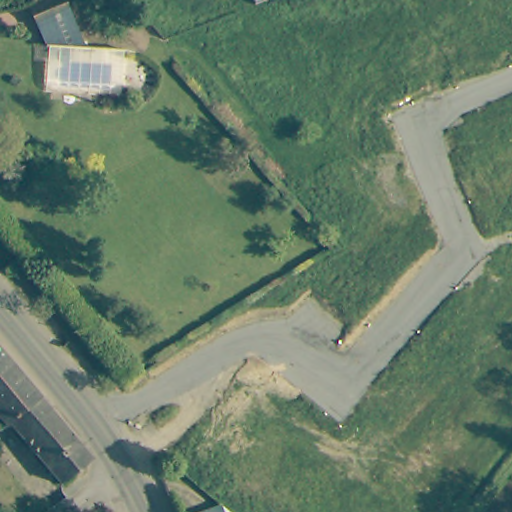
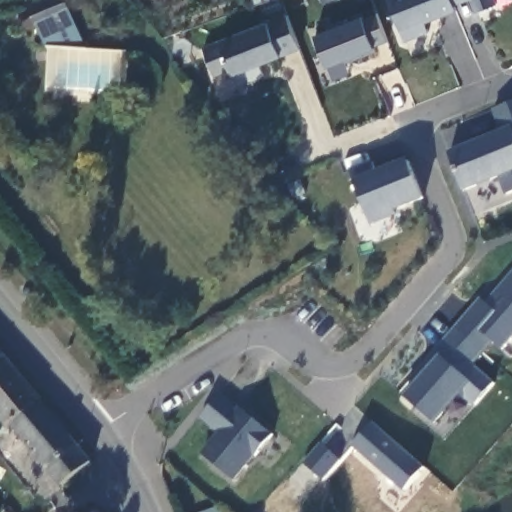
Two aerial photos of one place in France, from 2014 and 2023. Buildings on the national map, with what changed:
unchanged [(261,3),(249,7),(246,0),(260,0),(261,3)]
new [(406,42),(389,0),(470,0),(455,5),(457,11),(425,22),(430,33),(406,42)]
new [(500,3),(477,13),(473,0),(498,0),(500,3)]
unchanged [(43,43),(34,21),(65,8),(74,30),(43,43)]
new [(329,68),(316,35),(363,16),(365,18),(377,13),(388,42),(375,47),(376,49),(329,68)]
new [(279,17),(292,50),(262,62),(261,60),(251,64),(256,78),(230,88),(223,71),(207,78),(196,51),(279,17)]
new [(502,132),(493,111),(512,103),(512,194),(506,196),(499,179),(465,193),(450,153),(502,132)]
new [(372,161),(377,173),(408,160),(425,201),(395,213),(397,218),(373,228),(351,170),(372,161)]
new [(414,385),(408,381),(420,367),(426,372),(432,364),(427,359),(453,328),(481,352),(471,364),(493,383),(475,405),(460,393),(434,423),(404,397),(414,385)]
unchanged [(12,432),(9,434),(0,423),(0,355),(42,407),(12,432)]
new [(239,408),(275,434),(235,482),(200,454),(220,433),(200,420),(221,394),(239,408)]
unchanged [(47,473),(12,432),(42,407),(75,449),(91,469),(62,492),(47,473)]
unchanged [(207,512),(232,502),(237,512),(207,512)]

